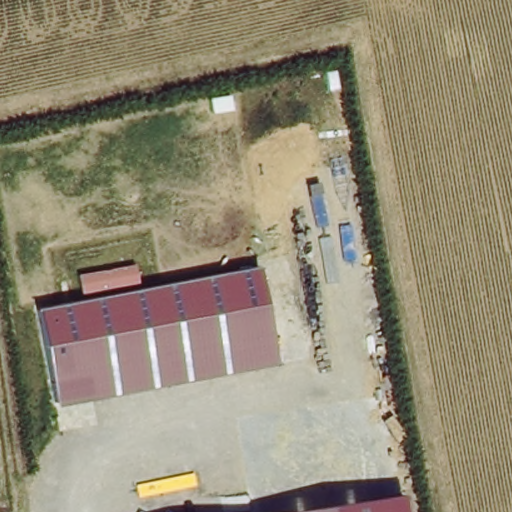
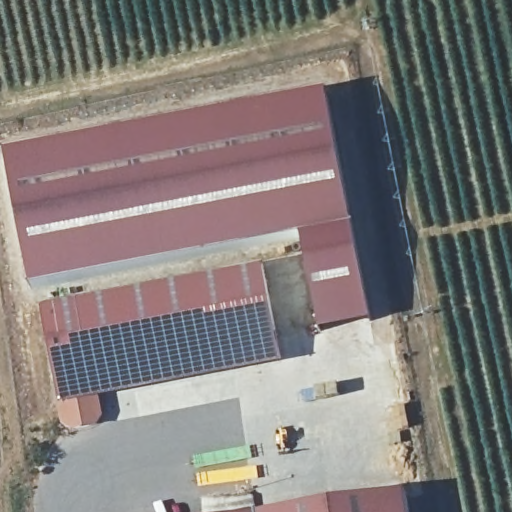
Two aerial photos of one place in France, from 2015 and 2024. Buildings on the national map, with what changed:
new [(327,91),(372,324),(321,334),(302,238),(32,291),(6,155),(327,91)]
unchanged [(42,309),(263,267),(284,366),(62,409),(42,309)]
unchanged [(410,512),(300,512),(407,496),(410,512)]

